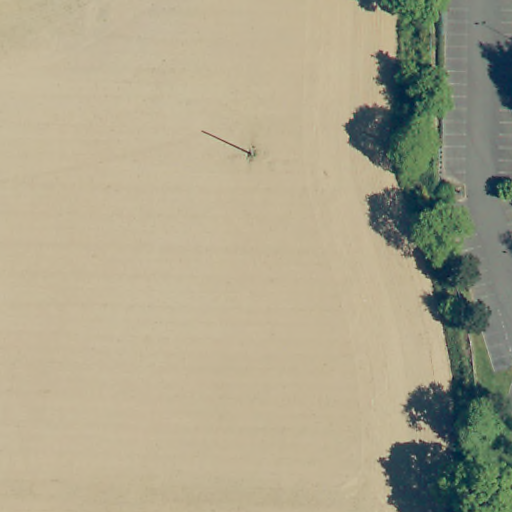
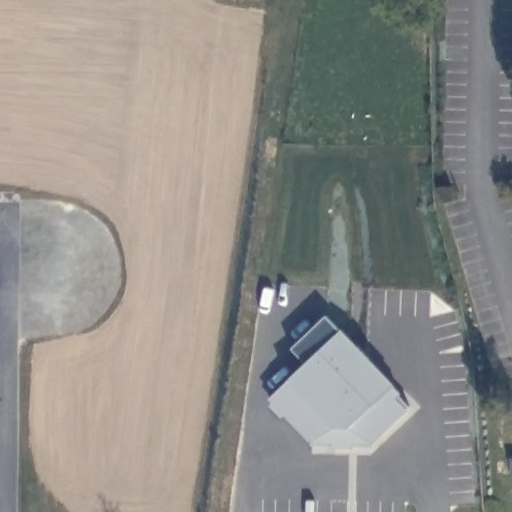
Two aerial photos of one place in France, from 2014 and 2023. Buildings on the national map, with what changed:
new [(342,330),(393,383),(412,404),(372,446),(313,445),(269,399),(307,364),(294,351),(328,318),(342,330)]

